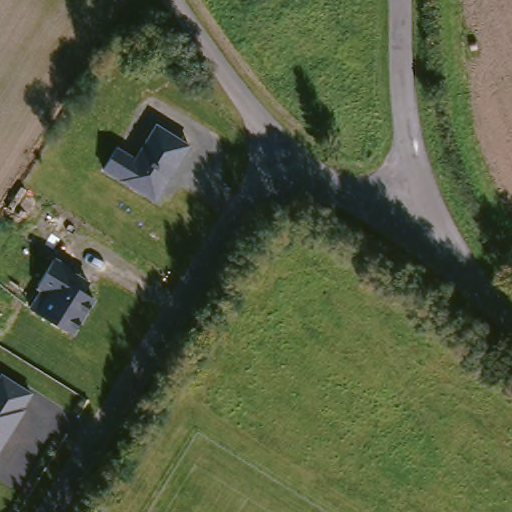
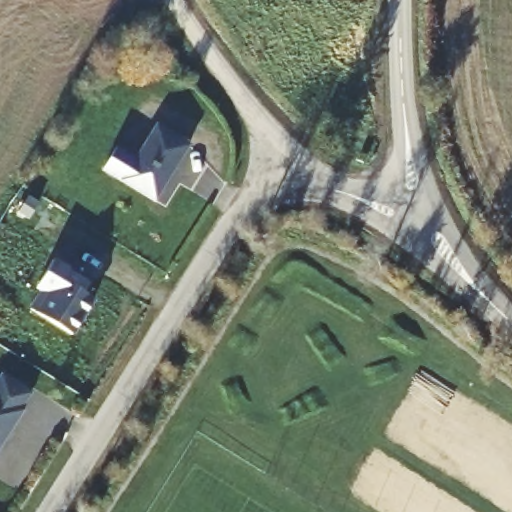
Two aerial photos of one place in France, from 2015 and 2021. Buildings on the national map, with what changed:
unchanged [(191,144),(156,201),(103,169),(118,146),(136,156),(156,124),(191,144)]
unchanged [(91,281),(85,293),(96,299),(74,335),(30,307),(41,290),(37,288),(56,258),(91,281)]
unchanged [(23,408),(26,409),(0,450),(0,376),(1,374),(32,392),(23,408)]

